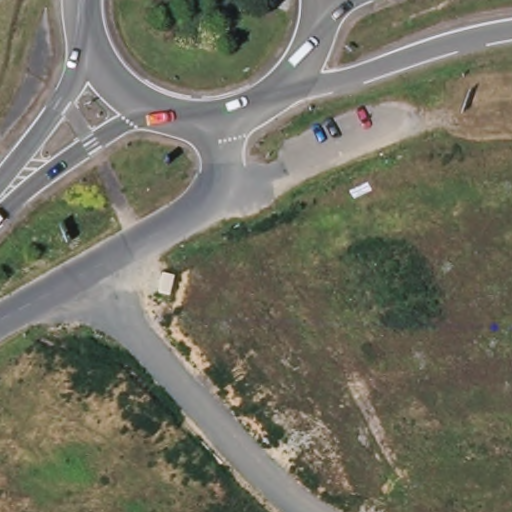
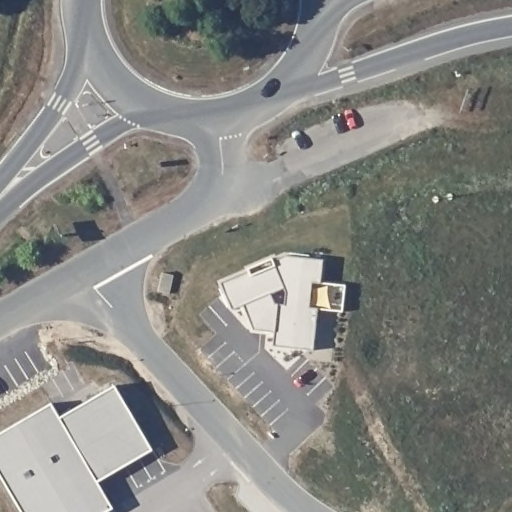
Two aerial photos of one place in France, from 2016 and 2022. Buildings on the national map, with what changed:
new [(249,268),(273,258),(275,260),(286,256),(324,260),(322,283),(347,285),(343,312),(318,310),(314,351),(274,346),(276,332),(255,330),(244,305),(233,310),(222,283),(250,271),(249,268)]
new [(114,508),(108,512),(22,512),(0,474),(0,434),(53,403),(114,508)]

